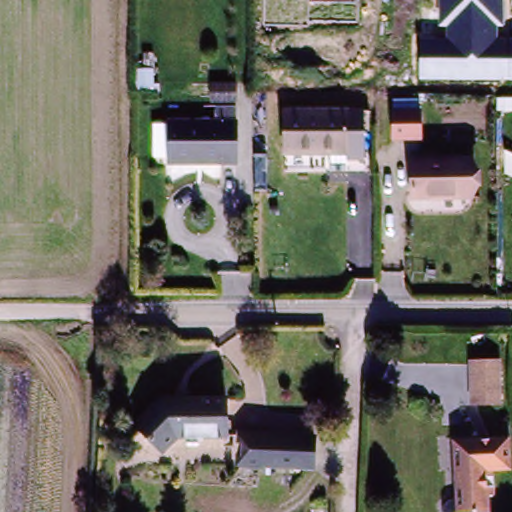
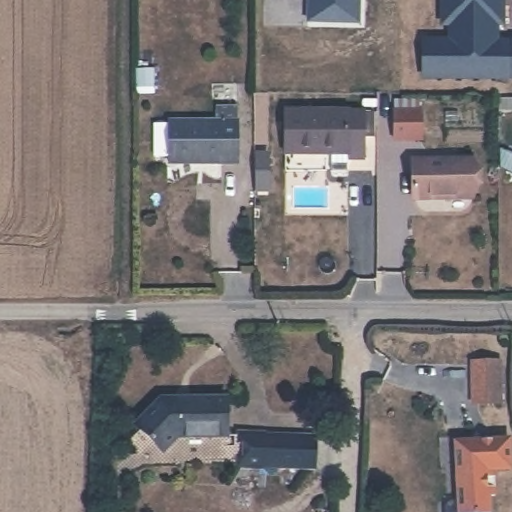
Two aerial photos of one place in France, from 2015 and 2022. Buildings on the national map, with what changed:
new [(360,29),(310,27),(311,0),(361,0),(360,29)]
unchanged [(499,40),(512,40),(512,79),(422,77),(420,40),(438,40),(437,0),(499,0),(499,40)]
unchanged [(241,101),(222,101),(217,101),(217,85),(240,84),(241,101)]
unchanged [(241,163),(174,163),(174,157),(159,157),(160,124),(175,124),(175,121),(219,122),(219,106),(241,106),(241,122),(241,163)]
unchanged [(287,155),(287,112),(347,112),(347,153),(287,155)]
unchanged [(421,112),(421,139),(393,139),(393,112),(421,112)]
unchanged [(475,159),(476,199),(418,200),(417,160),(475,159)]
unchanged [(470,402),(470,360),(497,361),(497,402),(470,402)]
unchanged [(180,437),(166,451),(140,425),(164,397),(228,397),(228,436),(180,437)]
unchanged [(294,467),(252,467),(243,467),(244,435),(254,435),(295,436),(294,467)]
unchanged [(440,512),(440,508),(449,498),(459,497),(457,470),(455,438),(509,436),(509,468),(495,468),(496,494),(486,494),(487,512),(475,512),(440,512)]

